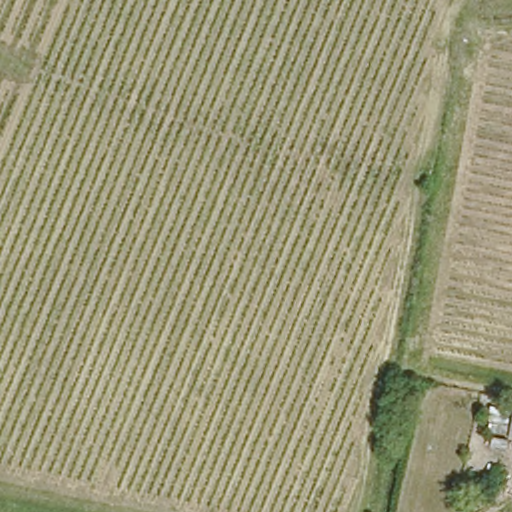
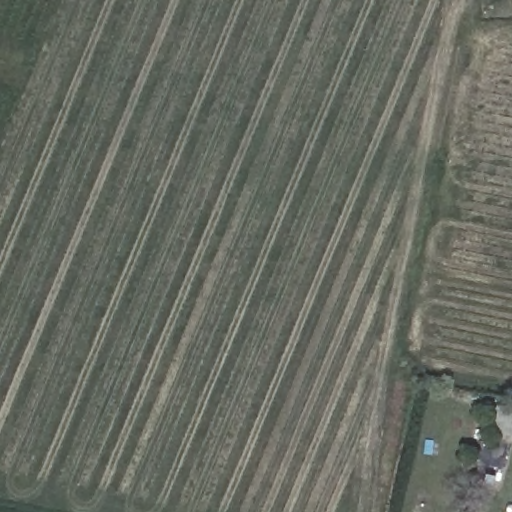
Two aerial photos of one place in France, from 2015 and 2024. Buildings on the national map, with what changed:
unchanged [(512,428),(512,440),(510,440),(512,428)]
unchanged [(488,498),(491,485),(506,487),(504,502),(488,498)]

